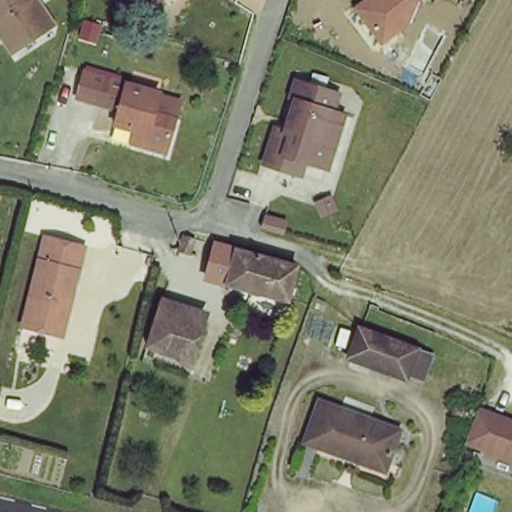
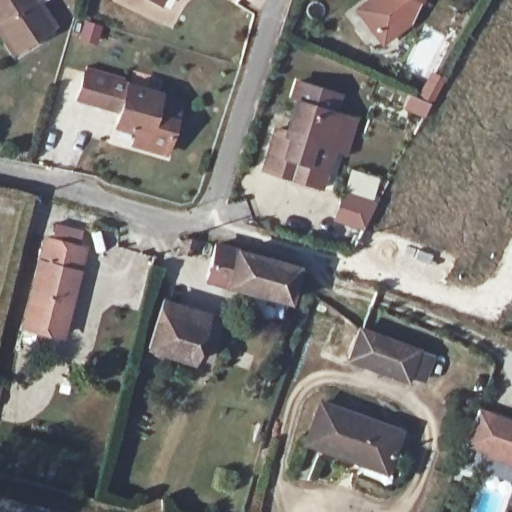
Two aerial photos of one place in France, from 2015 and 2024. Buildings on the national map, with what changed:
unchanged [(50,23),(12,44),(0,26),(0,0),(35,0),(50,23)]
unchanged [(366,0),(422,0),(421,3),(413,23),(381,46),(353,8),(366,0)]
unchanged [(283,163),(271,159),(269,153),(276,126),(285,128),(294,92),(290,90),(290,85),(292,78),(298,74),(336,86),(331,99),(346,103),(345,112),(343,111),(335,142),(331,160),(309,153),(305,170),(283,163)]
unchanged [(129,129),(110,123),(114,106),(98,102),(105,79),(158,94),(154,106),(178,113),(166,153),(141,146),(125,142),(129,129)]
new [(373,198),(363,230),(331,220),(341,189),(345,190),(348,181),(371,189),(368,197),(373,198)]
unchanged [(45,229),(88,240),(63,334),(21,323),(45,229)]
unchanged [(230,282),(235,255),(294,272),(288,299),(230,282)]
unchanged [(158,353),(167,319),(199,328),(191,363),(158,353)]
unchanged [(414,357),(429,364),(420,388),(405,382),(402,388),(346,365),(358,335),(414,357)]
unchanged [(345,462),(319,452),(300,445),(302,439),(316,401),(395,432),(381,469),(380,475),(345,462)]
unchanged [(512,420),(512,459),(465,439),(473,417),(478,406),(512,420)]

